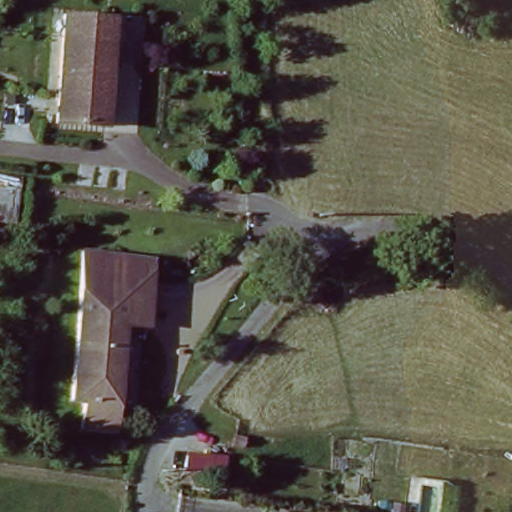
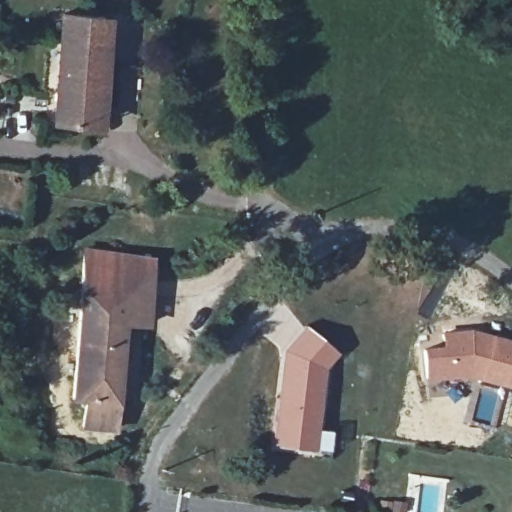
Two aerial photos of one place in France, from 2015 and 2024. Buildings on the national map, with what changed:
unchanged [(97,123),(55,125),(56,20),(108,18),(108,39),(108,122),(97,123)]
unchanged [(125,327),(117,434),(83,431),(84,403),(71,402),(83,248),(155,258),(150,327),(125,327)]
new [(281,350),(304,325),(337,352),(324,369),(318,428),(331,429),(328,453),(269,446),(281,350)]
new [(440,343),(441,331),(470,328),(512,339),(512,389),(469,380),(427,385),(422,346),(440,343)]

